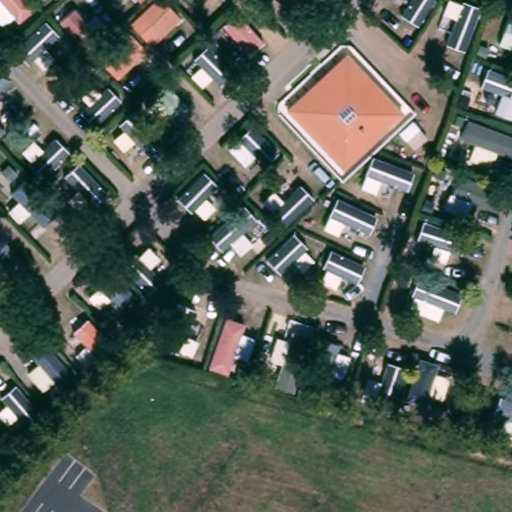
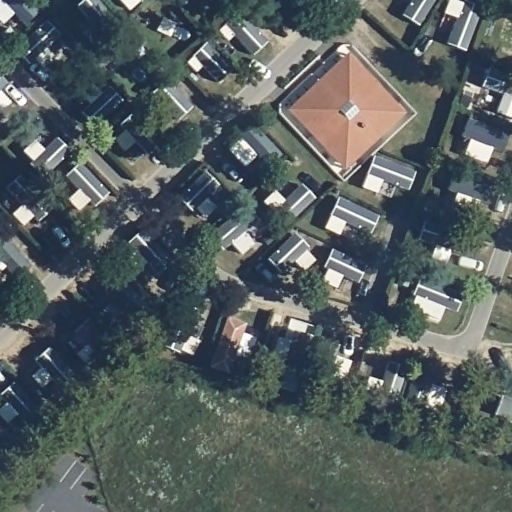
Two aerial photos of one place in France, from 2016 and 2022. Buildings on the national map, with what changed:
unchanged [(165,0),(182,17),(154,42),(132,20),(155,0),(165,0)]
unchanged [(179,0),(202,0),(189,12),(179,0)]
unchanged [(124,27),(148,49),(120,73),(98,55),(124,27)]
unchanged [(332,151),(293,111),(303,102),(322,83),(350,56),(357,63),(398,106),(404,113),(383,134),(348,168),(340,160),(332,151)]
unchanged [(426,277),(467,291),(452,330),(410,318),(426,277)]

